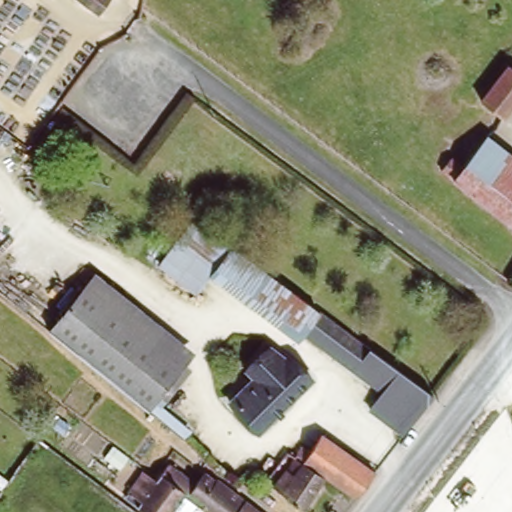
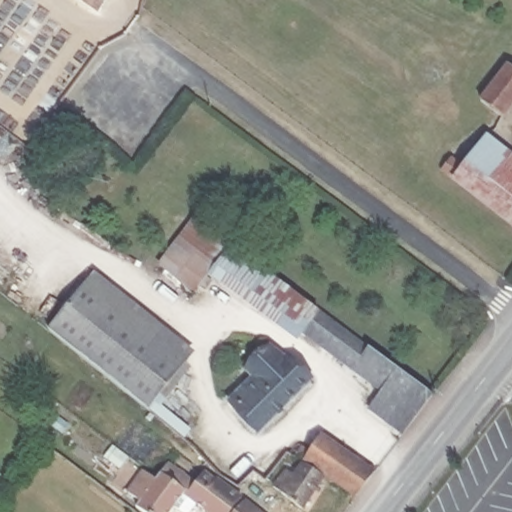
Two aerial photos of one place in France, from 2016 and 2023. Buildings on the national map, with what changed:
unchanged [(98,13),(80,0),(107,0),(98,13)]
unchanged [(508,64),(512,67),(512,104),(503,115),(482,99),(508,64)]
unchanged [(487,136),(512,155),(512,228),(451,181),(487,136)]
unchanged [(215,269),(196,294),(160,267),(196,220),(232,246),(215,269)]
unchanged [(303,334),(215,269),(232,246),(320,311),(303,334)]
unchanged [(95,273),(193,352),(184,363),(86,285),(95,273)]
unchanged [(184,363),(146,411),(48,333),(86,285),(184,363)]
unchanged [(303,334),(320,311),(353,335),(336,358),(303,334)]
unchanged [(353,335),(385,359),(433,395),(415,419),(403,434),(370,408),(382,392),(336,358),(353,335)]
unchanged [(263,434),(233,402),(257,379),(250,371),(275,347),(317,380),(263,434)]
unchanged [(326,477),(312,467),(303,462),(295,456),(303,446),(311,451),(322,435),(375,472),(360,491),(356,497),(354,496),(326,477)]
unchanged [(303,510),(273,488),(286,471),(295,459),(302,463),(325,478),(303,510)]
unchanged [(208,512),(185,494),(171,512),(144,512),(137,506),(141,502),(128,492),(145,472),(156,481),(169,464),(195,485),(202,475),(205,473),(215,481),(217,479),(228,489),(242,500),(232,512),(208,512)]
unchanged [(0,490),(0,476),(7,481),(0,490)]
unchanged [(257,512),(238,512),(245,502),(257,512)]

